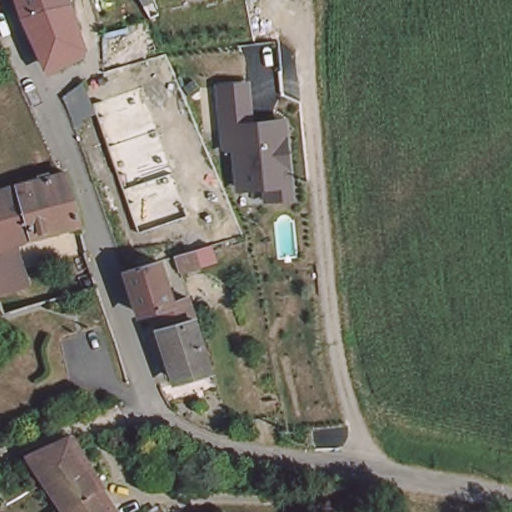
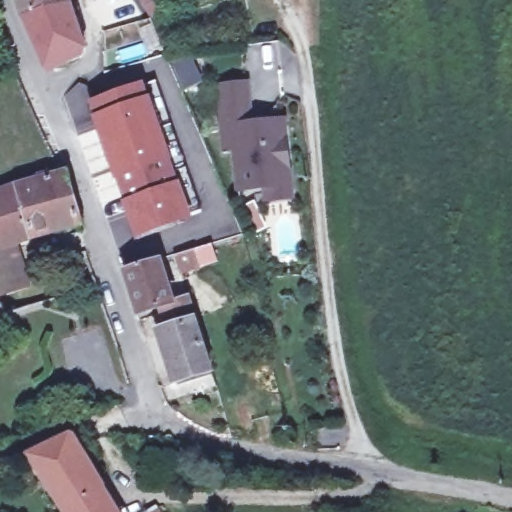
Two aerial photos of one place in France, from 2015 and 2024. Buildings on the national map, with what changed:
unchanged [(47,71),(44,64),(21,16),(15,0),(68,0),(68,1),(81,47),(82,54),(47,71)]
unchanged [(267,205),(266,194),(240,196),(232,154),(223,155),(215,82),(251,80),(256,119),(287,116),(297,202),(267,205)]
new [(153,81),(196,209),(182,213),(139,85),(153,81)]
new [(139,85),(182,213),(132,229),(89,101),(139,85)]
unchanged [(57,104),(79,87),(91,119),(67,128),(57,104)]
unchanged [(81,220),(17,244),(0,249),(0,193),(67,170),(81,220)]
unchanged [(1,297),(0,296),(0,249),(17,244),(33,284),(1,297)]
unchanged [(158,313),(137,319),(125,276),(211,251),(215,265),(177,275),(176,270),(160,275),(171,310),(186,305),(192,326),(165,335),(161,321),(158,313)]
unchanged [(165,335),(192,326),(207,373),(172,385),(160,337),(165,335)]
unchanged [(90,488),(55,510),(22,453),(61,434),(90,488)]
unchanged [(90,488),(103,512),(56,512),(55,510),(90,488)]

